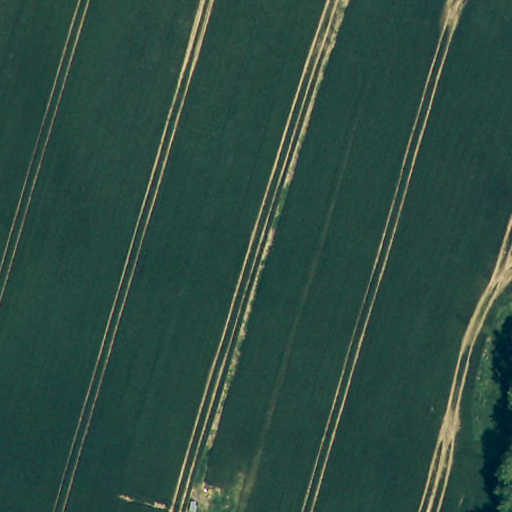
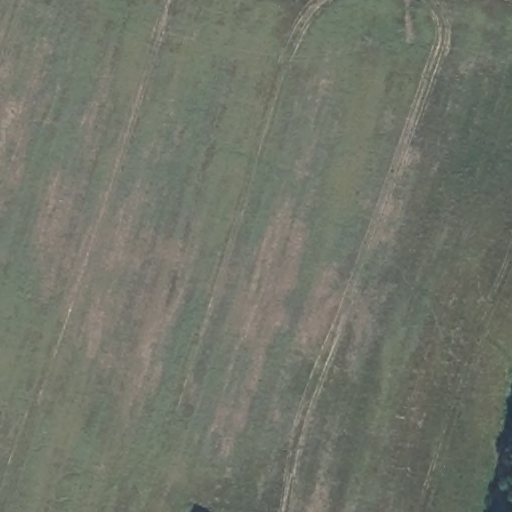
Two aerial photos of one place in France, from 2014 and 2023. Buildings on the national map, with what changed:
[]

